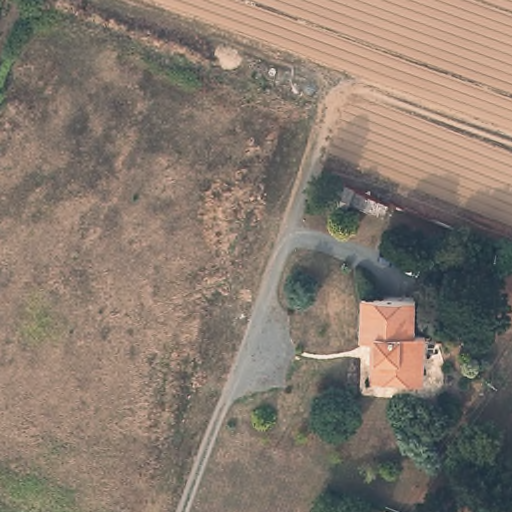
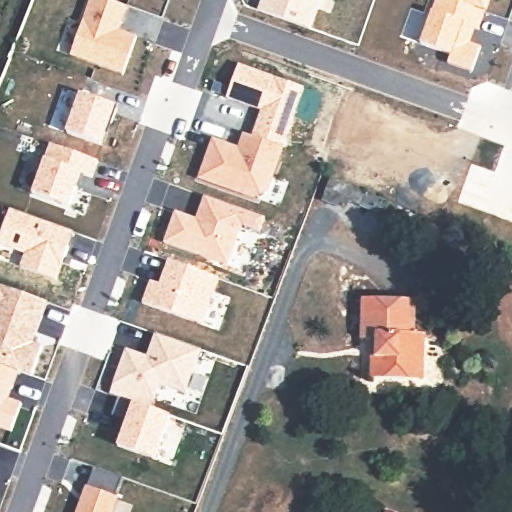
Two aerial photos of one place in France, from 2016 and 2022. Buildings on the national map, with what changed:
new [(111,0),(127,5),(119,30),(136,36),(124,75),(70,56),(90,0),(111,0)]
new [(322,0),(311,31),(257,10),(261,0),(322,0)]
new [(455,0),(489,0),(486,10),(455,0)]
new [(213,137),(238,145),(243,132),(251,135),(260,110),(225,97),(238,63),(304,87),(267,191),(253,199),(197,179),(213,137)]
new [(79,91),(116,104),(101,146),(65,133),(79,91)]
new [(98,159),(92,178),(80,174),(70,208),(30,195),(43,157),(51,142),(98,159)]
unchanged [(333,179),(390,202),(387,209),(382,206),(379,212),(375,210),(349,199),(345,208),(324,199),(333,179)]
new [(175,209),(195,216),(203,195),(264,218),(260,232),(243,226),(229,267),(162,243),(175,209)]
new [(74,230),(56,281),(19,267),(24,254),(0,246),(0,234),(9,208),(74,230)]
new [(150,280),(159,283),(167,258),(220,277),(202,326),(141,304),(150,280)]
new [(49,301),(35,343),(42,346),(31,375),(19,370),(9,398),(22,403),(12,432),(0,428),(0,285),(49,301)]
unchanged [(415,380),(371,380),(371,358),(371,340),(362,339),(363,299),(417,300),(416,335),(426,335),(426,360),(425,380),(415,380)]
new [(125,419),(112,415),(118,397),(109,394),(125,347),(147,355),(155,332),(201,349),(186,393),(160,384),(150,408),(170,415),(154,460),(115,447),(125,419)]
new [(84,485),(87,486),(93,467),(122,478),(116,494),(119,496),(113,512),(76,512),(84,485)]

